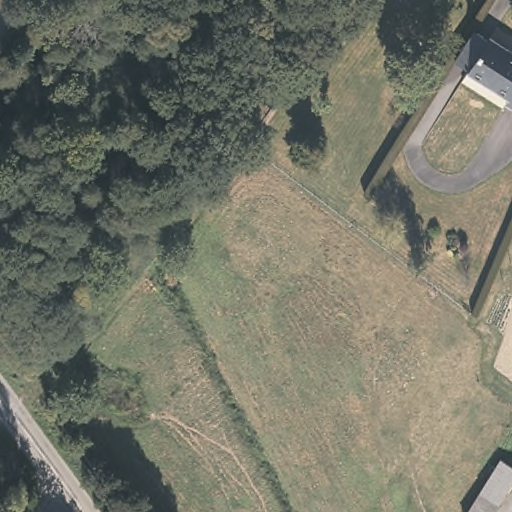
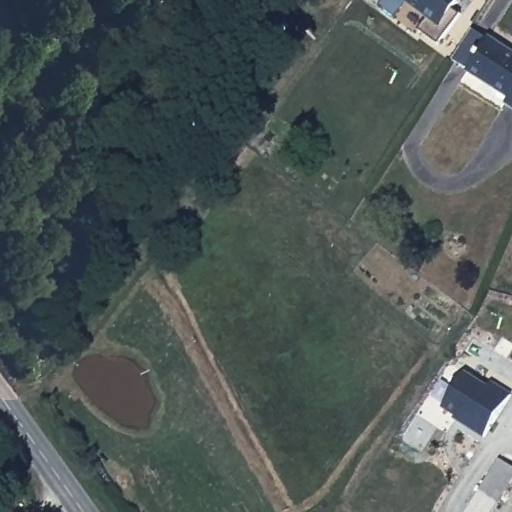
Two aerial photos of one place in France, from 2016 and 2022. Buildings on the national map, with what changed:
new [(454,9),(462,15),(439,46),(419,31),(429,18),(405,0),(460,0),(454,9)]
unchanged [(512,109),(507,106),(510,101),(468,77),(491,41),(512,54),(512,109)]
new [(455,416),(442,409),(466,371),(489,385),(492,380),(512,393),(485,438),(454,420),(455,416)]
unchanged [(512,477),(486,512),(465,512),(499,458),(512,466),(512,477)]

